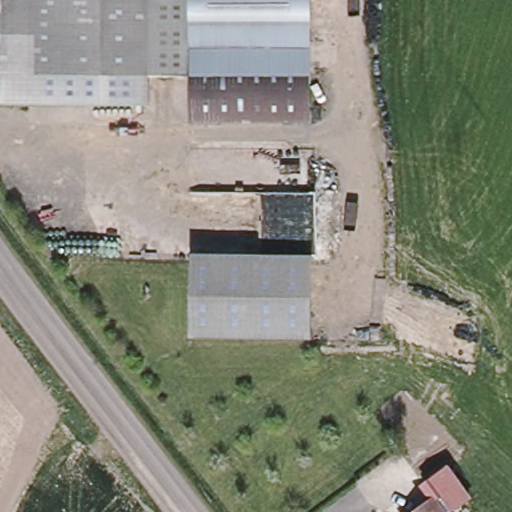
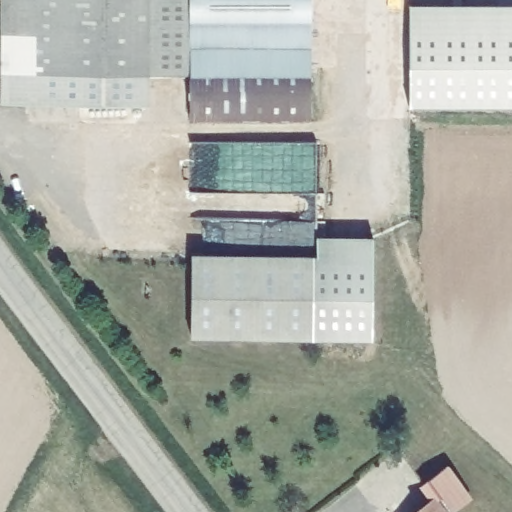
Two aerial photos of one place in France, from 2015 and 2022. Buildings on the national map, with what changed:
unchanged [(2,65),(3,0),(148,0),(147,70),(28,69),(27,96),(1,95),(2,65)]
unchanged [(147,70),(148,0),(189,0),(190,70),(147,70)]
unchanged [(190,118),(190,70),(189,0),(310,0),(309,117),(190,118)]
new [(408,107),(408,4),(512,4),(512,106),(408,107)]
new [(371,341),(311,340),(312,321),(312,260),(192,257),(191,252),(316,256),(316,236),(372,236),(371,341)]
unchanged [(191,338),(192,257),(312,260),(312,321),(311,340),(287,340),(191,338)]
unchanged [(433,502),(441,512),(422,512),(433,502)]

